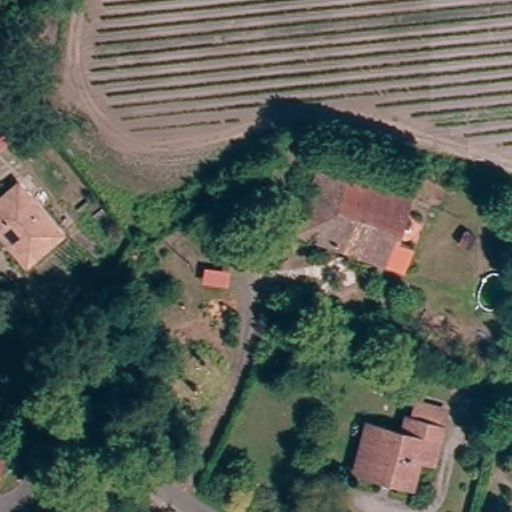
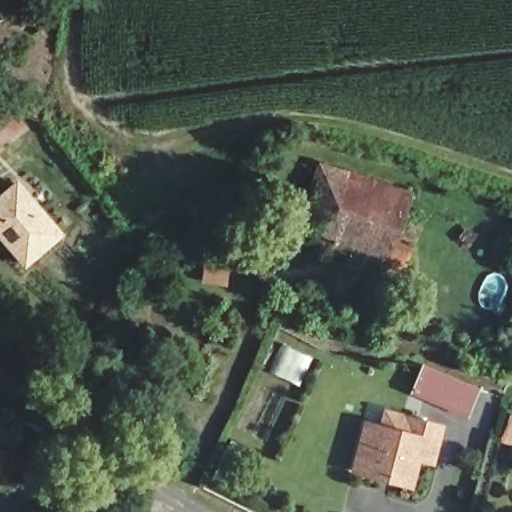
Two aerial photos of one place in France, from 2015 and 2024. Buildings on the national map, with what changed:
unchanged [(399,195),(384,242),(398,249),(391,269),(293,234),(315,166),(399,195)]
unchanged [(18,188),(61,236),(24,271),(0,243),(0,205),(18,188)]
new [(412,388),(423,363),(480,388),(469,414),(412,388)]
unchanged [(438,464),(430,483),(404,475),(401,483),(377,475),(391,429),(426,438),(430,424),(462,433),(458,449),(453,467),(438,464)]

